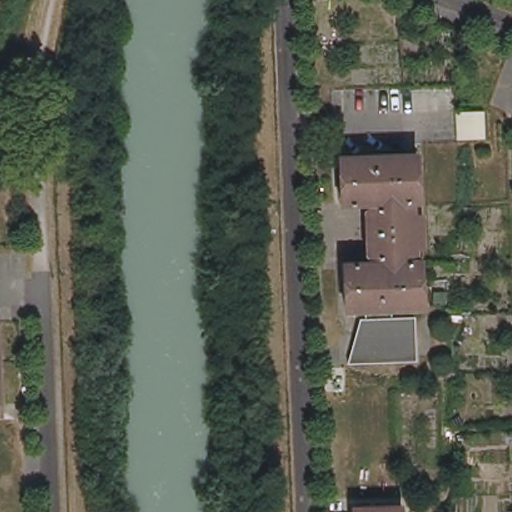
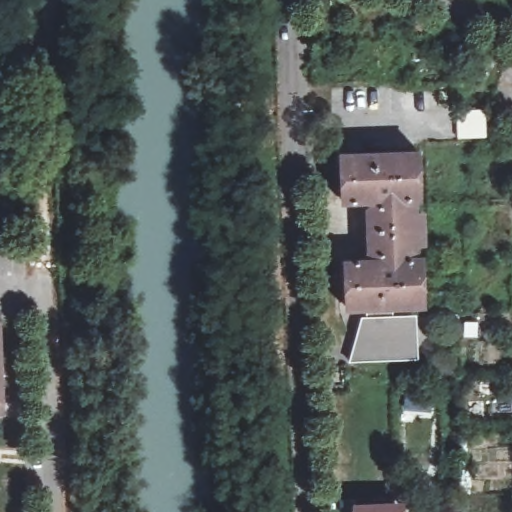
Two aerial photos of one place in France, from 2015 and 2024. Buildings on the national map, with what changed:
unchanged [(459,137),(457,110),(485,110),(485,137),(459,137)]
unchanged [(364,311),(345,311),(343,266),(375,264),(375,258),(370,259),(366,255),(365,216),(368,211),(373,210),(373,205),(340,206),(337,160),(412,156),(415,204),(410,204),(411,219),(418,218),(420,247),(412,249),(412,263),(417,263),(420,308),(396,309),(391,310),(364,311)]
unchanged [(388,323),(406,323),(407,358),(346,360),(355,321),(365,320),(364,311),(391,310),(388,323)]
unchanged [(3,409),(0,409),(0,344),(3,409)]
unchanged [(398,503),(398,512),(350,512),(350,505),(398,503)]

